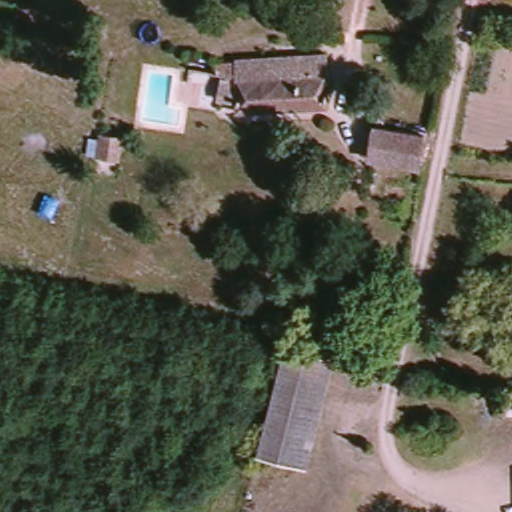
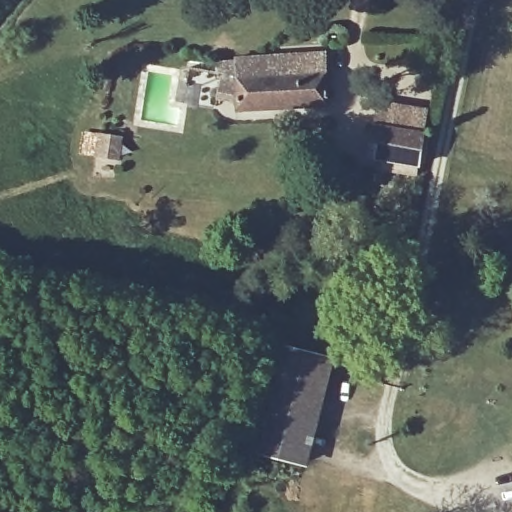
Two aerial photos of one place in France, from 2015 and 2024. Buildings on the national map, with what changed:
unchanged [(510,0),(512,0),(512,1),(510,0)]
unchanged [(232,100),(212,102),(211,78),(206,78),(205,67),(224,66),(224,58),(323,53),(322,105),(233,110),(232,100)]
unchanged [(419,136),(414,168),(367,161),(371,128),(419,136)]
unchanged [(121,145),(118,168),(97,166),(99,143),(121,145)]
unchanged [(330,362),(298,467),(257,453),(289,349),(330,362)]

